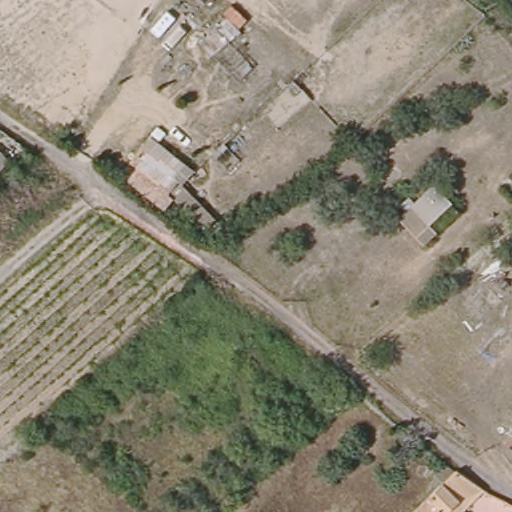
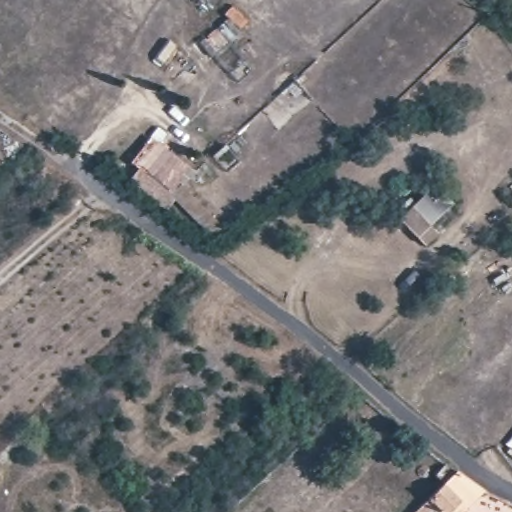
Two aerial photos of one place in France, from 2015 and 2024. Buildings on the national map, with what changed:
unchanged [(197,162),(177,187),(180,189),(171,200),(133,170),(142,158),(135,152),(155,128),(197,162)]
unchanged [(0,175),(0,145),(16,161),(0,175)]
unchanged [(450,201),(427,222),(437,232),(424,245),(399,219),(435,185),(450,201)]
unchanged [(455,472),(479,492),(460,512),(415,512),(428,499),(455,472)]

